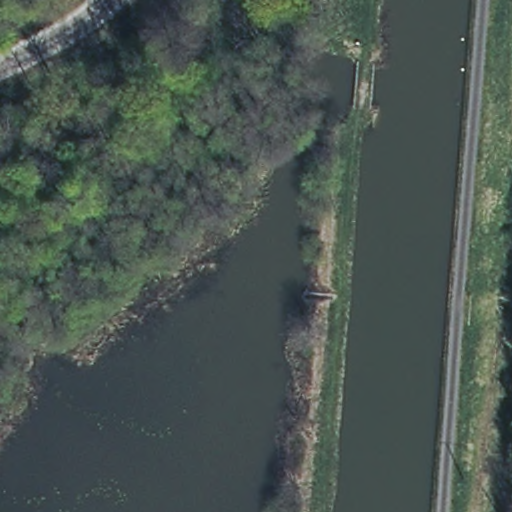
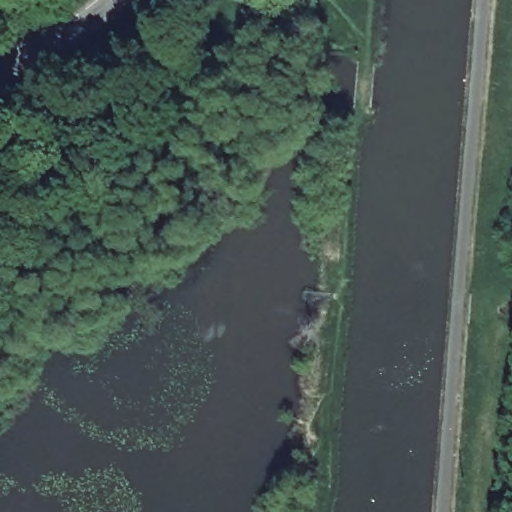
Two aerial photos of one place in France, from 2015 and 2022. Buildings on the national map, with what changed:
[]

